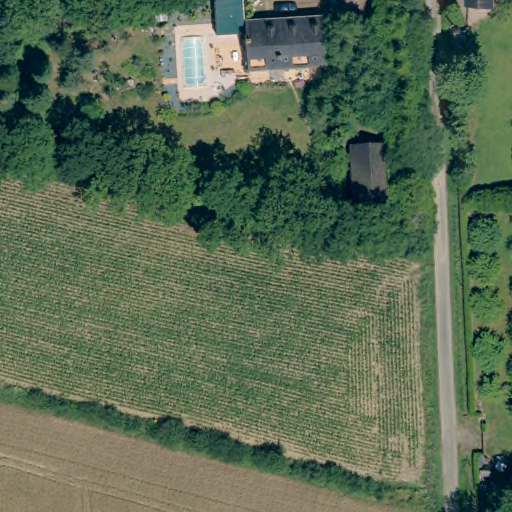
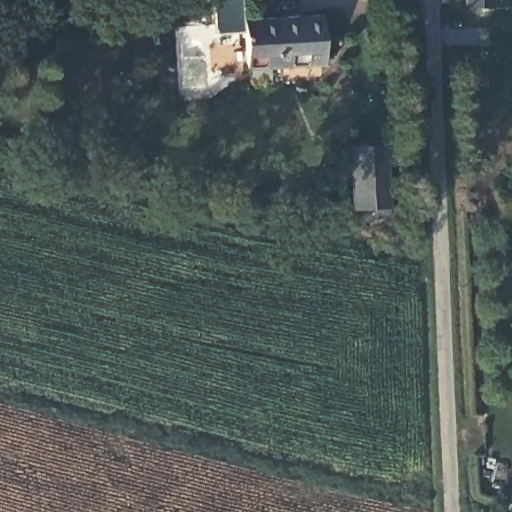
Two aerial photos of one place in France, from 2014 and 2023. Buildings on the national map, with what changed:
unchanged [(499,11),(473,11),(472,0),(498,0),(499,11)]
unchanged [(325,19),(327,63),(251,68),(249,23),(325,19)]
unchanged [(385,142),(387,203),(355,204),(352,144),(385,142)]

